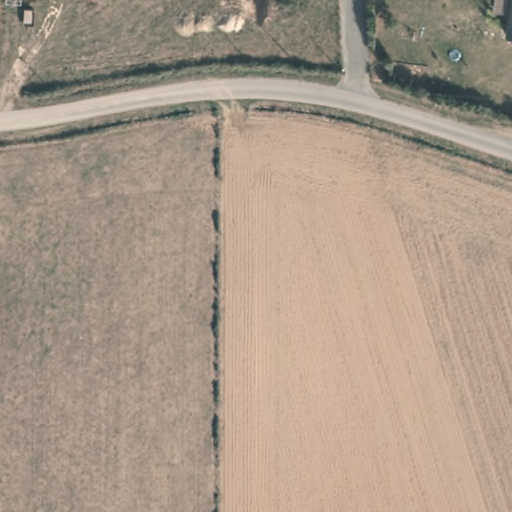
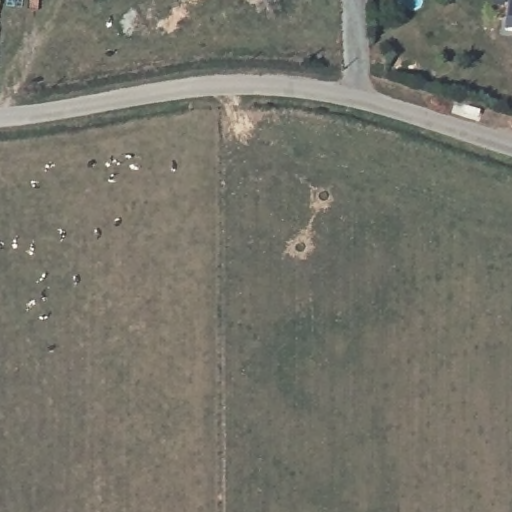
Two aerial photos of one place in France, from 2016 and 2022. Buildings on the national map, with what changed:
unchanged [(506,35),(511,0),(512,0),(512,36),(506,35)]

